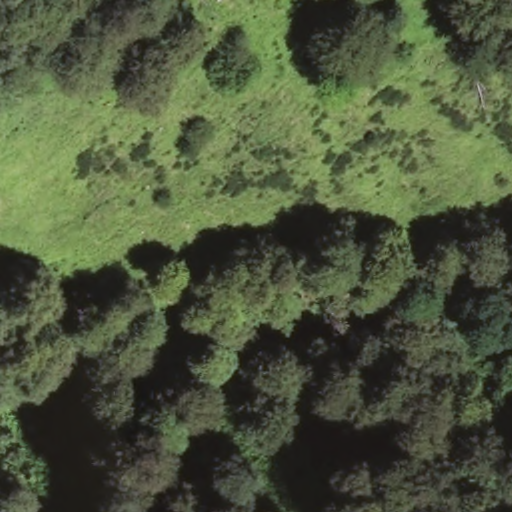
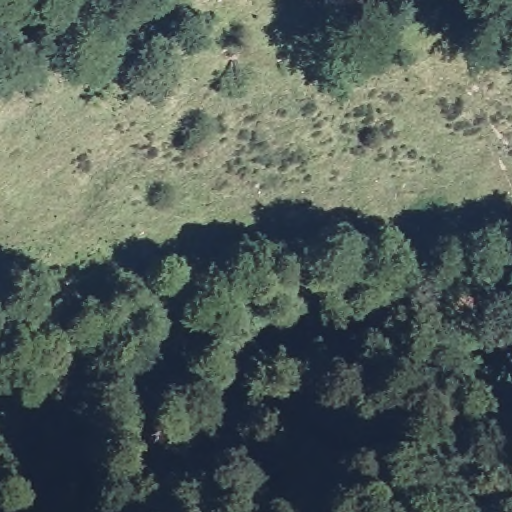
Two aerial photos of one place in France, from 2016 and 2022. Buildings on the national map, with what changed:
[]

